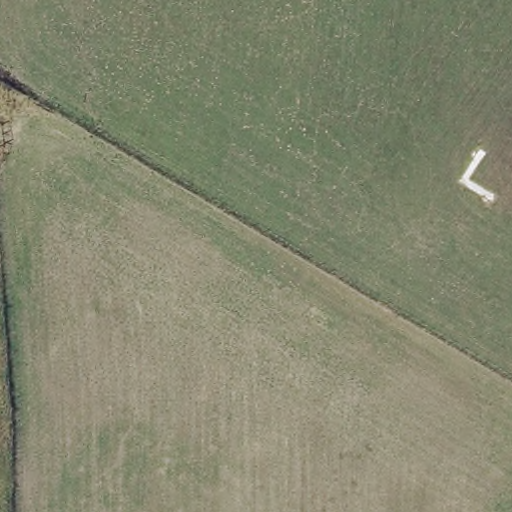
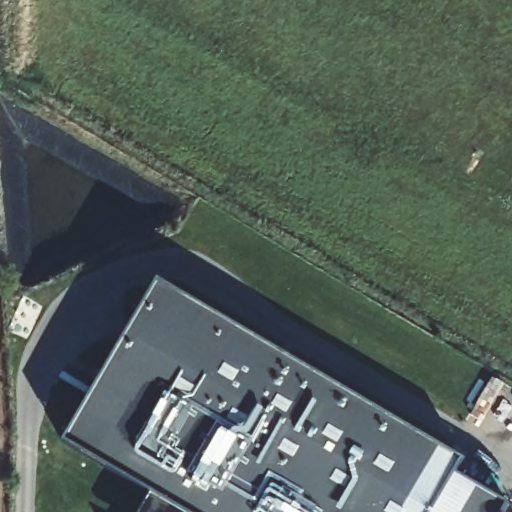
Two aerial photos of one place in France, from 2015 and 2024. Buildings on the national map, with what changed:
new [(465,459),(458,473),(504,503),(499,512),(181,512),(64,443),(159,280),(465,459)]
new [(182,512),(143,512),(153,495),(182,512)]

